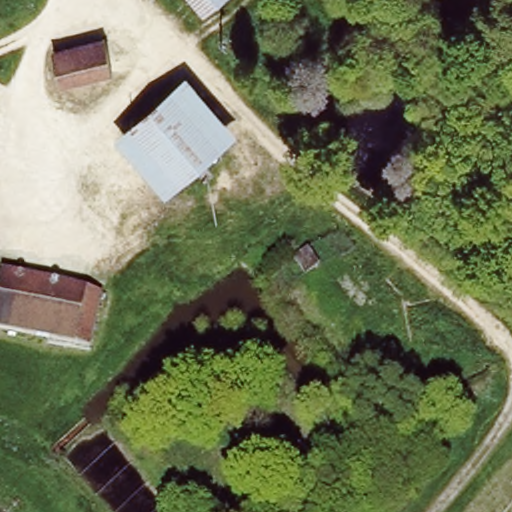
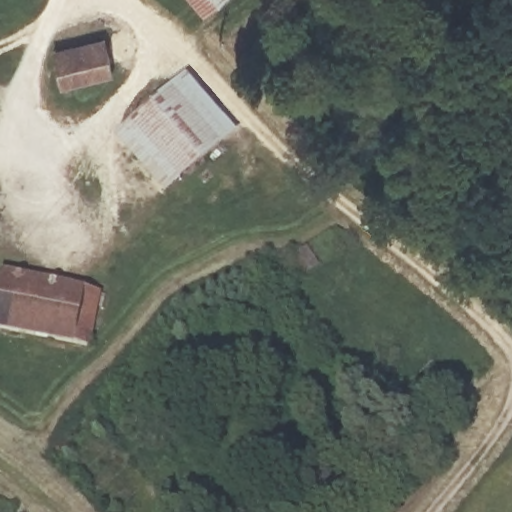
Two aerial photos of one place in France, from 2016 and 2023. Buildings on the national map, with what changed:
unchanged [(184,0),(227,0),(203,21),(184,0)]
unchanged [(51,56),(100,40),(113,75),(65,91),(51,56)]
unchanged [(181,76),(182,75),(189,83),(232,132),(162,192),(112,136),(181,76)]
unchanged [(102,292),(91,344),(0,326),(0,277),(1,270),(102,292)]

